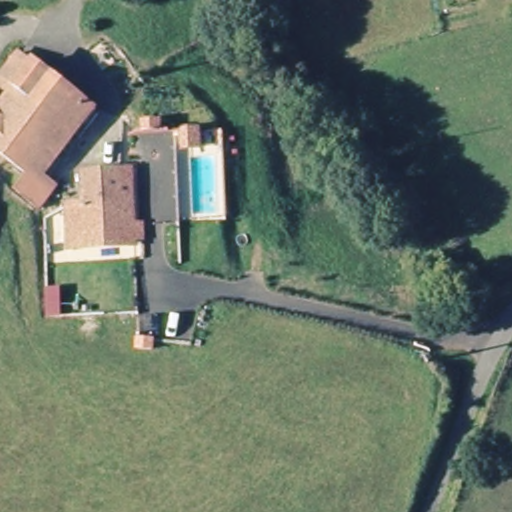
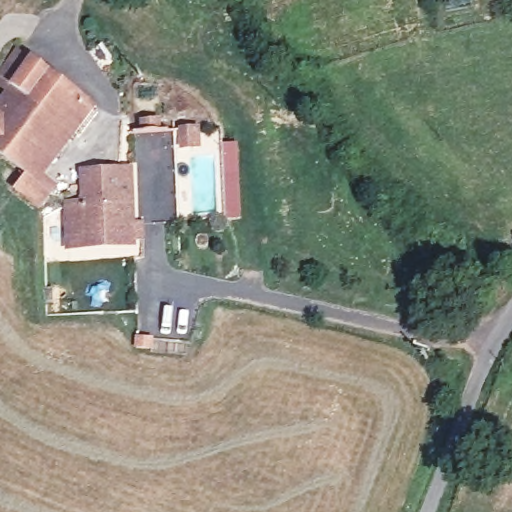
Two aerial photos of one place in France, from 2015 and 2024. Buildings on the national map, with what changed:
unchanged [(43,214),(21,195),(37,177),(0,137),(0,117),(23,91),(8,77),(32,46),(103,111),(45,180),(62,193),(55,201),(43,214)]
unchanged [(66,254),(65,254),(64,248),(64,211),(78,211),(79,211),(78,178),(118,178),(129,177),(129,209),(130,233),(139,232),(139,244),(139,248),(130,249),(130,253),(115,253),(82,254),(66,254)]

